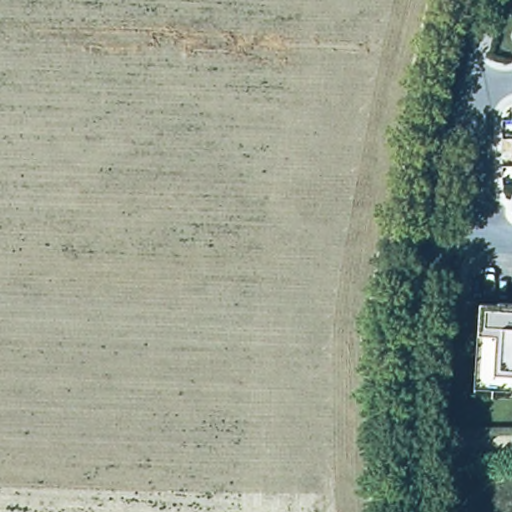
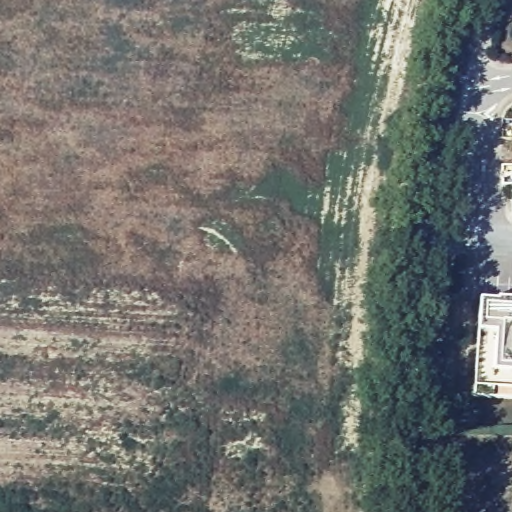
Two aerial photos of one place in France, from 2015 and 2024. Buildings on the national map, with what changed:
unchanged [(480,307),(498,308),(498,306),(512,307),(512,403),(475,401),(480,307)]

